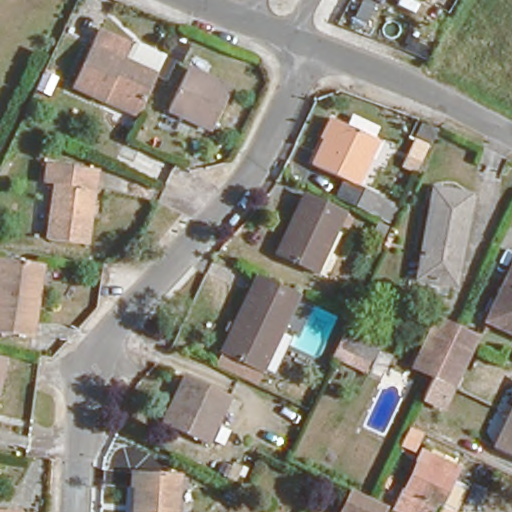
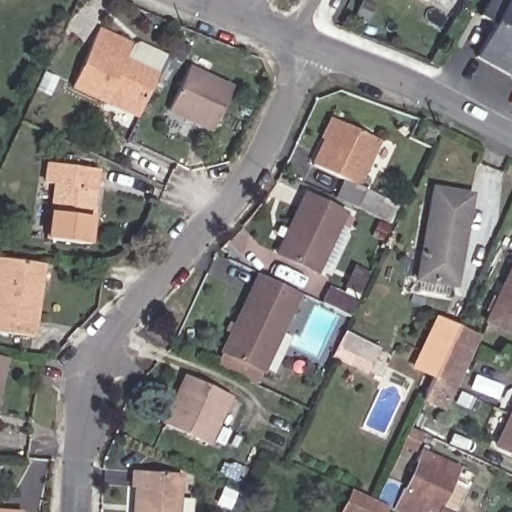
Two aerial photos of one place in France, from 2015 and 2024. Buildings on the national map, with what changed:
new [(511,80),(473,59),(493,26),(480,17),(488,0),(508,0),(512,2),(512,79),(511,80)]
unchanged [(101,103),(69,89),(93,31),(125,44),(126,41),(161,54),(139,109),(135,117),(101,103)]
unchanged [(165,113),(178,70),(222,83),(208,126),(165,113)]
unchanged [(360,184),(398,202),(387,225),(332,195),(339,179),(306,162),(329,115),(379,137),(360,184)]
unchanged [(44,237),(50,184),(37,182),(39,163),(89,168),(81,240),(44,237)]
unchanged [(411,277),(431,189),(465,197),(446,285),(411,277)]
unchanged [(277,255),(300,198),(337,213),(314,271),(277,255)]
unchanged [(485,319),(512,254),(512,330),(485,319)]
unchanged [(0,256),(38,260),(30,334),(0,331),(0,256)]
unchanged [(215,351),(249,272),(295,292),(260,371),(215,351)]
unchanged [(414,360),(430,320),(454,329),(472,337),(460,366),(456,377),(437,369),(414,360)]
unchanged [(367,375),(331,359),(340,332),(372,346),(367,375)]
unchanged [(0,372),(0,354),(1,355),(0,372)]
unchanged [(161,423),(183,375),(227,395),(205,442),(161,423)]
unchanged [(489,446),(512,395),(512,456),(489,446)]
unchanged [(446,512),(436,508),(434,512),(412,512),(407,510),(394,502),(403,483),(412,487),(424,463),(417,460),(422,448),(457,467),(450,479),(466,488),(455,512),(446,512)]
unchanged [(126,494),(130,467),(180,472),(178,512),(129,512),(131,494),(126,494)]
unchanged [(348,488),(371,501),(381,506),(378,512),(339,512),(337,512),(348,488)]
unchanged [(21,511),(21,512),(0,512),(0,509),(21,511)]

